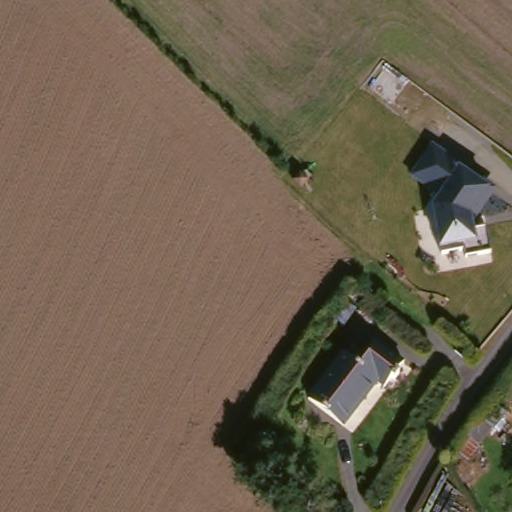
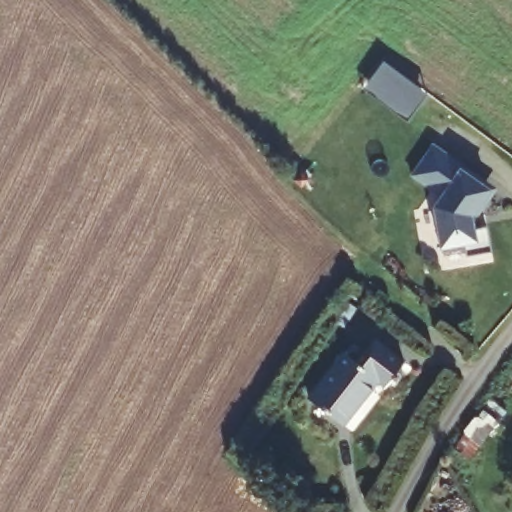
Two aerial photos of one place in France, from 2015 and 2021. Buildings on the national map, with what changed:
new [(427,93),(407,120),(363,88),(384,61),(427,93)]
unchanged [(497,182),(473,222),(475,242),(437,248),(429,203),(437,186),(417,172),(434,137),(497,182)]
unchanged [(349,348),(362,358),(380,334),(410,358),(391,382),(382,377),(348,420),(314,393),(349,348)]

